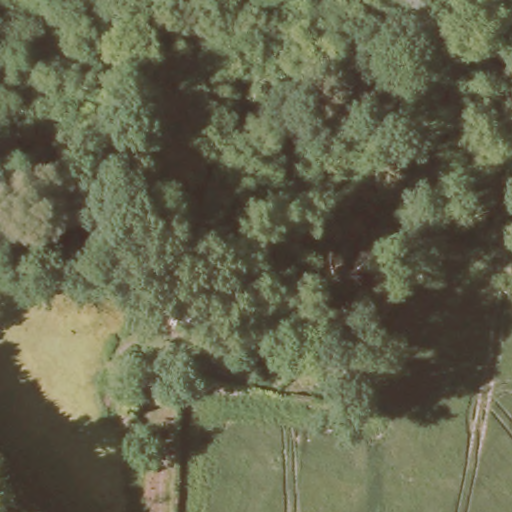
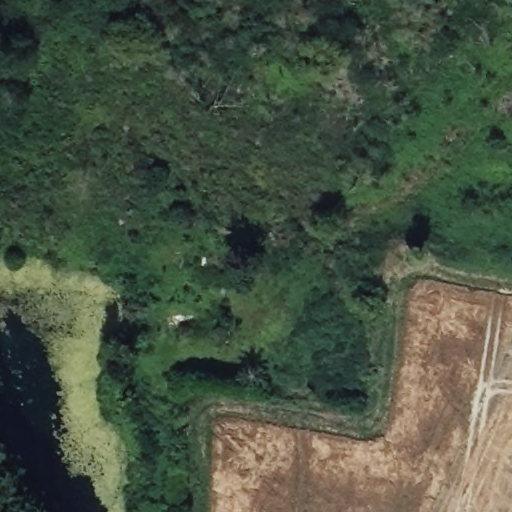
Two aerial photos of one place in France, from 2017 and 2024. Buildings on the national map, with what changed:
unchanged [(200,312),(200,330),(157,327),(157,310),(200,312)]

